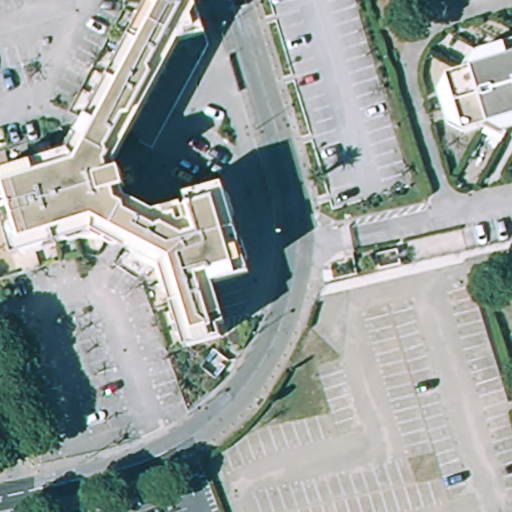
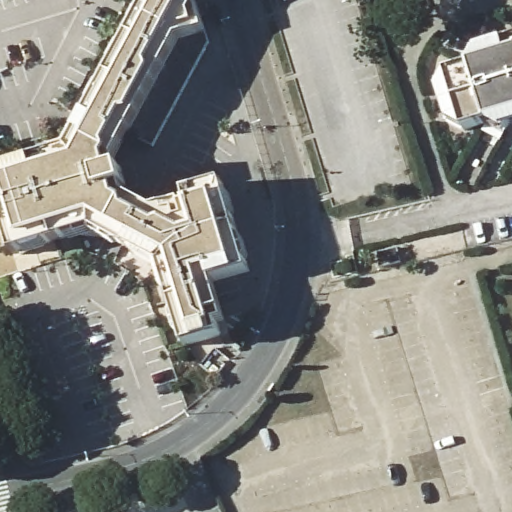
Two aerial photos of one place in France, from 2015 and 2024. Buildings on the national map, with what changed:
unchanged [(4,175),(6,169),(25,164),(28,167),(47,162),(49,156),(71,150),(83,127),(89,125),(95,113),(93,108),(104,87),(109,86),(116,72),(114,67),(124,48),(129,47),(140,28),(137,22),(147,4),(145,0),(198,0),(212,44),(157,148),(135,136),(120,165),(123,175),(127,174),(132,192),(129,193),(131,200),(160,215),(194,205),(192,198),(225,188),(253,276),(219,286),(231,326),(223,329),(226,340),(191,351),(186,337),(181,335),(175,317),(179,314),(173,296),(168,294),(161,268),(142,259),(140,254),(125,246),(120,247),(100,237),(76,244),(72,240),(54,246),(52,251),(32,257),(27,254),(14,257),(0,212),(0,176),(4,175)]
unchanged [(490,51),(512,44),(512,128),(492,122),(467,130),(451,77),(476,70),(490,51)]

